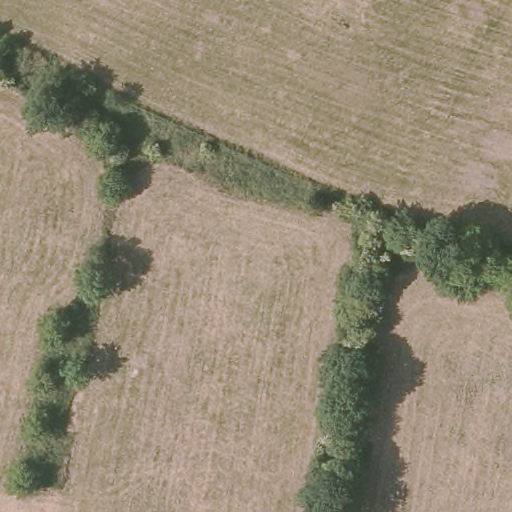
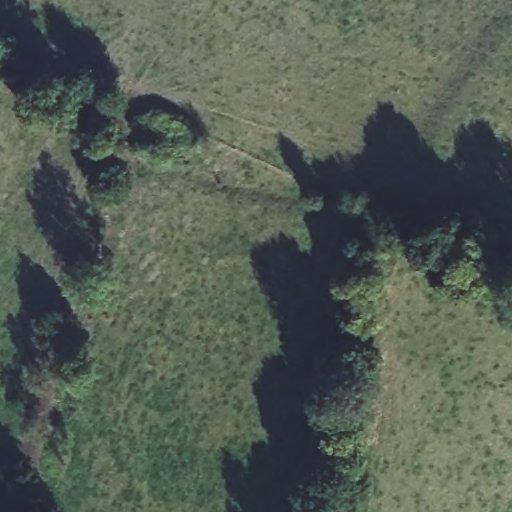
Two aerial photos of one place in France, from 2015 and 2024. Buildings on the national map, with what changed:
[]

